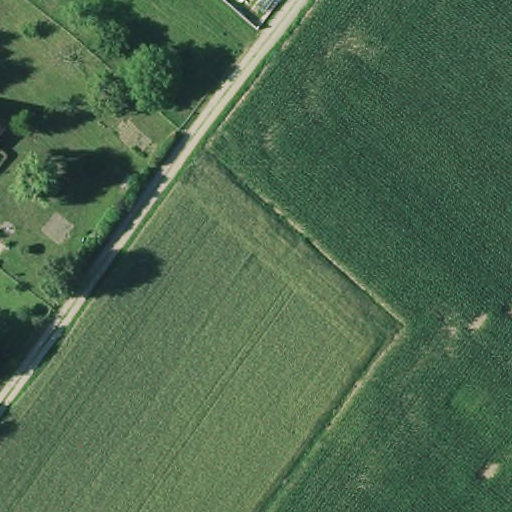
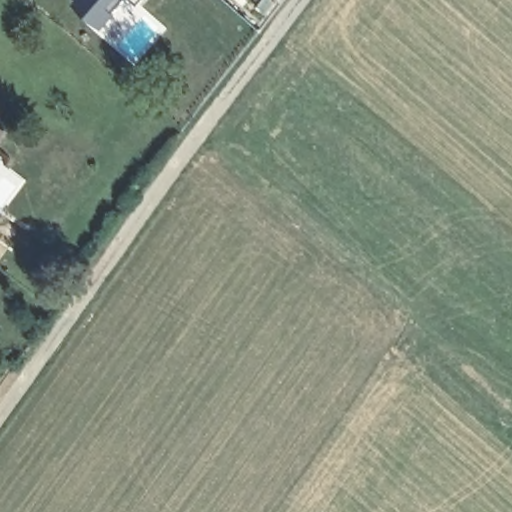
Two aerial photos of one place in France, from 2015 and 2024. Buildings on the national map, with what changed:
new [(68,6),(72,0),(124,0),(99,33),(68,6)]

